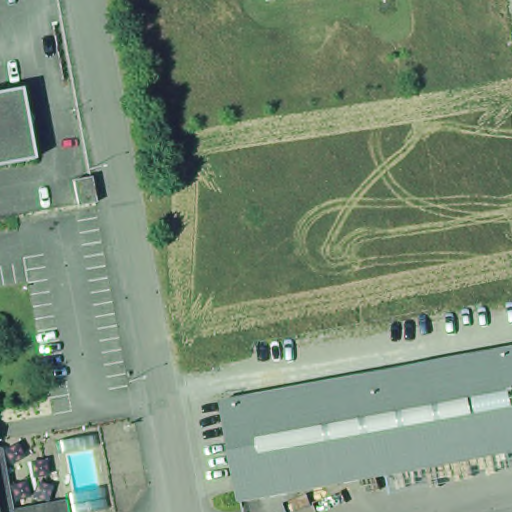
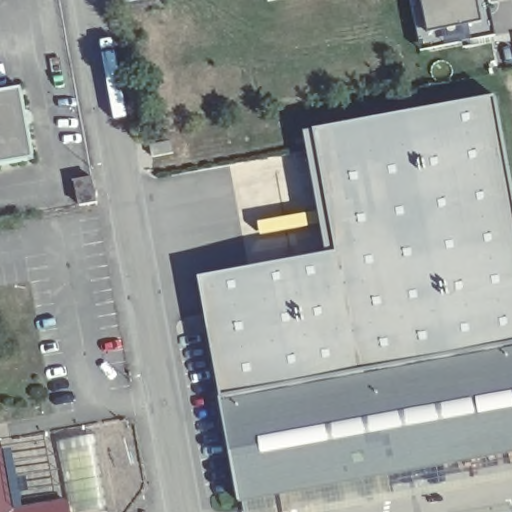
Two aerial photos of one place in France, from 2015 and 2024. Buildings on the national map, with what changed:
new [(421,52),(410,0),(486,0),(494,39),(421,52)]
unchanged [(27,158),(0,163),(0,92),(14,89),(27,158)]
new [(199,279),(321,256),(300,131),(491,100),(512,224),(512,345),(220,396),(199,279)]
unchanged [(97,206),(77,210),(72,183),(92,179),(97,206)]
unchanged [(238,496),(220,396),(512,345),(512,447),(238,496)]
unchanged [(0,457),(8,508),(10,512),(0,512),(0,457)]
unchanged [(8,508),(63,500),(66,512),(10,512),(8,508)]

